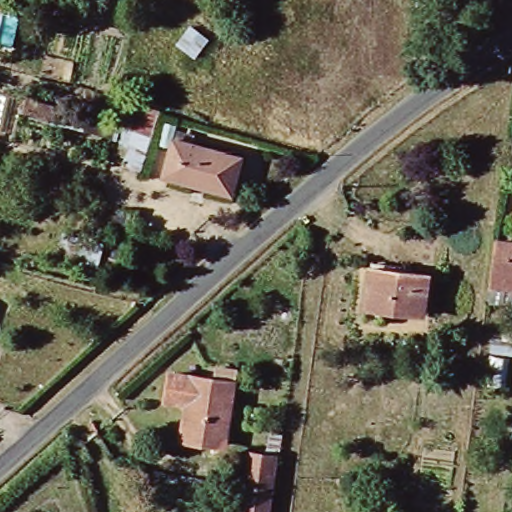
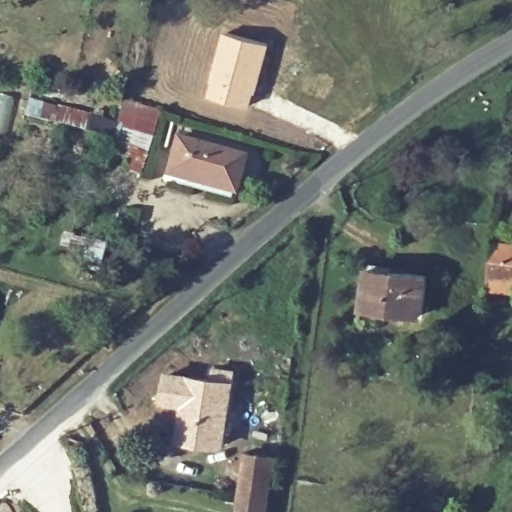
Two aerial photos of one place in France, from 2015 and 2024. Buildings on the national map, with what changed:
new [(227,30),(272,43),(253,108),(209,95),(227,30)]
unchanged [(135,175),(120,169),(121,160),(106,155),(116,115),(123,116),(126,103),(156,116),(135,175)]
unchanged [(31,105),(57,113),(53,128),(26,120),(31,105)]
unchanged [(170,176),(181,140),(230,155),(219,191),(170,176)]
unchanged [(488,285),(493,239),(512,241),(512,287),(488,285)]
unchanged [(366,310),(372,265),(422,272),(416,317),(366,310)]
unchanged [(232,373),(222,446),(179,439),(184,403),(164,401),(167,376),(187,379),(214,382),(216,371),(232,373)]
unchanged [(265,512),(234,512),(243,453),(275,456),(265,512)]

